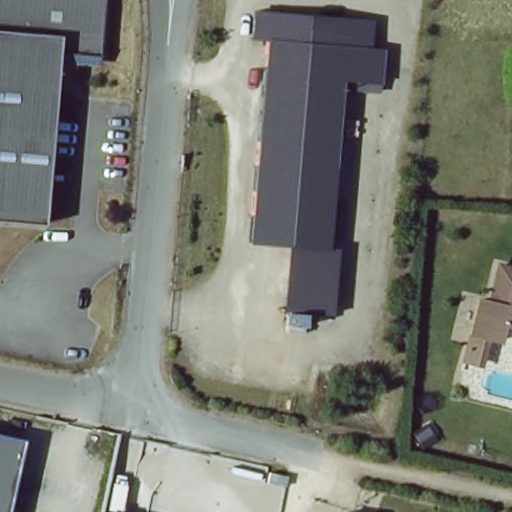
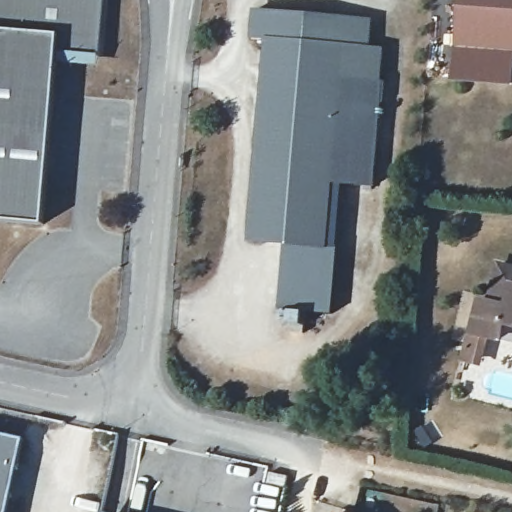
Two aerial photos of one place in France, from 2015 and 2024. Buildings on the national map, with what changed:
unchanged [(0,219),(0,0),(107,0),(100,62),(57,62),(43,221),(0,219)]
new [(450,77),(455,0),(512,0),(512,82),(450,77)]
unchanged [(328,245),(247,242),(263,41),(248,39),(251,10),(372,20),(372,45),(385,46),(382,80),(340,79),(328,245)]
unchanged [(307,316),(306,326),(280,324),(282,311),(288,243),(328,245),(336,245),(335,317),(307,316)]
unchanged [(497,306),(487,304),(479,338),(485,339),(482,367),(461,363),(478,297),(487,299),(496,265),(506,270),(497,306)]
unchanged [(507,270),(512,271),(512,329),(512,328),(507,345),(500,343),(479,338),(487,304),(497,306),(506,270),(507,270)]
unchanged [(9,512),(0,512),(0,434),(25,439),(9,512)]

